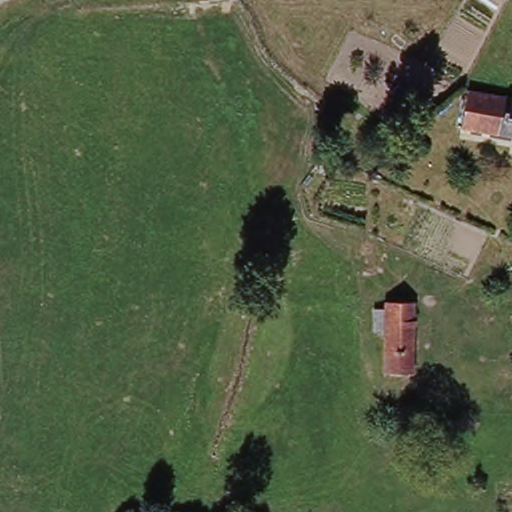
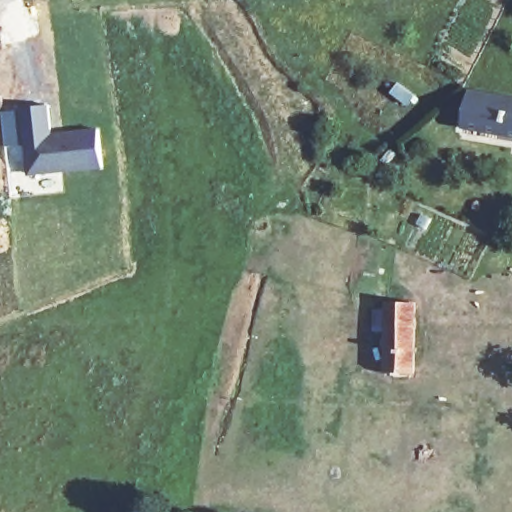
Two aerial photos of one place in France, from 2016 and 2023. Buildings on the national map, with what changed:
unchanged [(464,133),(471,97),(512,103),(512,142),(501,140),(464,133)]
new [(48,106),(51,136),(98,131),(102,169),(33,176),(27,171),(21,109),(48,106)]
unchanged [(339,154),(354,154),(353,169),(339,169),(339,154)]
unchanged [(393,334),(382,333),(382,312),(392,312),(393,302),(424,302),(424,375),(392,375),(393,334)]

